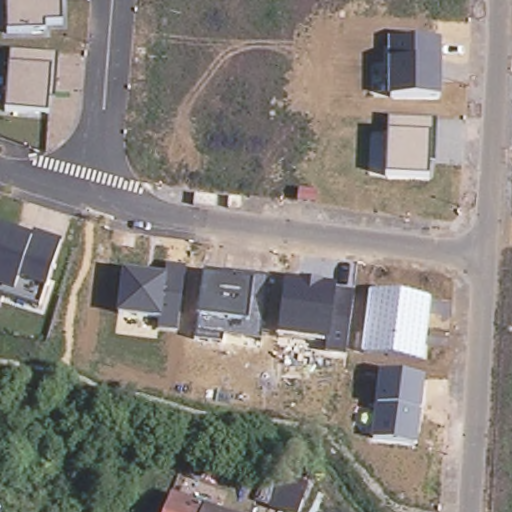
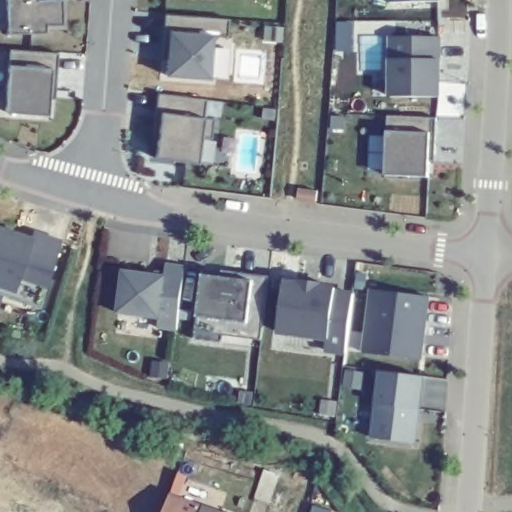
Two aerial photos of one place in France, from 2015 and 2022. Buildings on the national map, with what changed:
unchanged [(60,1),(61,26),(45,27),(44,36),(8,35),(7,0),(35,0),(35,2),(60,1)]
new [(439,0),(439,3),(389,3),(389,0),(439,0)]
new [(161,19),(225,24),(223,41),(209,40),(205,83),(161,80),(163,55),(158,55),(161,19)]
unchanged [(389,58),(389,36),(442,36),(442,60),(442,98),(388,97),(389,58)]
unchanged [(58,55),(55,98),(49,98),(48,116),(6,111),(9,69),(10,50),(58,55)]
new [(160,137),(153,136),(160,94),(207,99),(205,118),(215,120),(213,139),(203,138),(199,163),(158,158),(160,137)]
unchanged [(388,131),(388,116),(438,118),(436,161),(429,161),(428,176),(387,174),(388,131)]
unchanged [(29,236),(30,231),(61,241),(38,303),(4,293),(0,306),(0,305),(0,226),(29,236)]
unchanged [(123,270),(166,276),(168,265),(186,267),(181,300),(178,329),(158,327),(159,318),(118,313),(123,270)]
unchanged [(199,316),(204,275),(204,270),(225,273),(226,270),(269,276),(262,339),(224,333),(224,341),(196,338),(199,316)]
unchanged [(285,278),(337,284),(336,287),(354,290),(346,354),(326,352),(327,339),(278,334),(285,278)]
unchanged [(369,288),(432,295),(424,360),(361,353),(369,288)]
unchanged [(380,371),(424,377),(423,410),(417,444),(372,437),(380,371)]
demolished [(288,471),(276,500),(262,495),(274,465),(288,471)]
unchanged [(204,507),(218,512),(165,512),(172,494),(204,507)]

